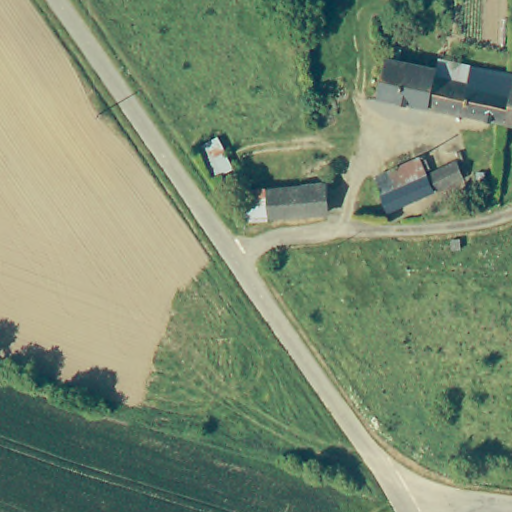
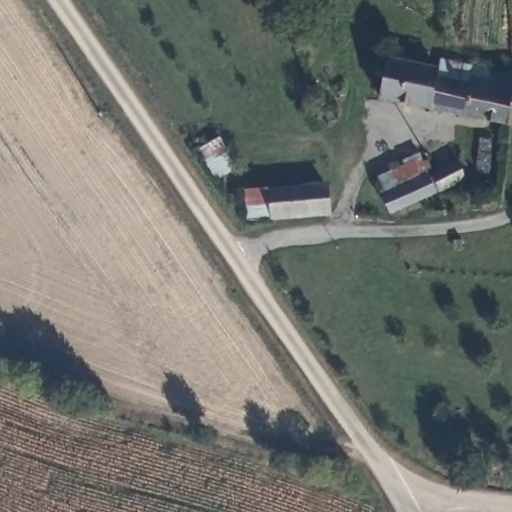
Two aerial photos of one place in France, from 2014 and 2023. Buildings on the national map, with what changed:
unchanged [(379,100),(379,90),(371,88),(377,58),(391,61),(392,57),(439,68),(438,76),(473,83),(476,68),(512,76),(512,113),(509,126),(379,100)]
unchanged [(509,126),(512,113),(512,126),(509,126)]
unchanged [(236,170),(218,181),(194,146),(219,134),(236,170)]
unchanged [(374,179),(412,162),(420,181),(431,176),(438,192),(391,215),(374,179)]
unchanged [(466,180),(442,192),(434,175),(458,164),(466,180)]
unchanged [(334,211),(278,215),(277,184),(308,181),(333,179),(334,211)]
unchanged [(498,185),(502,187),(507,191),(506,203),(496,205),(494,206),(490,204),(486,201),(484,196),(486,190),(489,187),(493,185),(498,185)]

